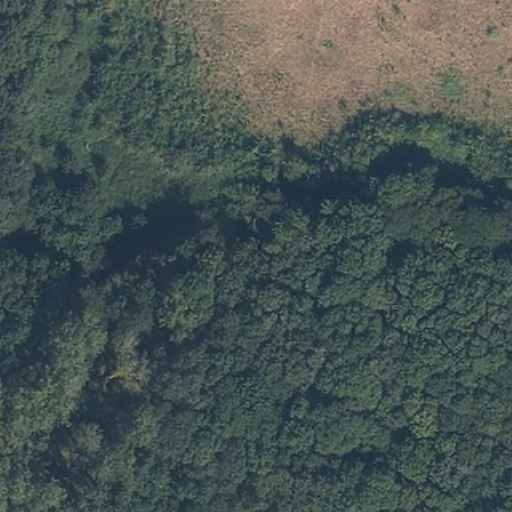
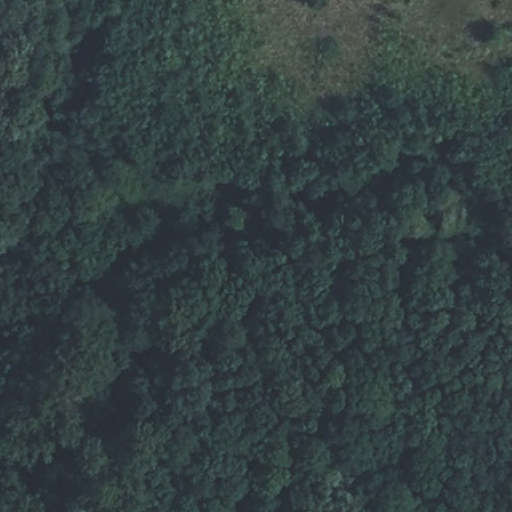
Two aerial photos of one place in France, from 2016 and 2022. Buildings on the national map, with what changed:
[]

